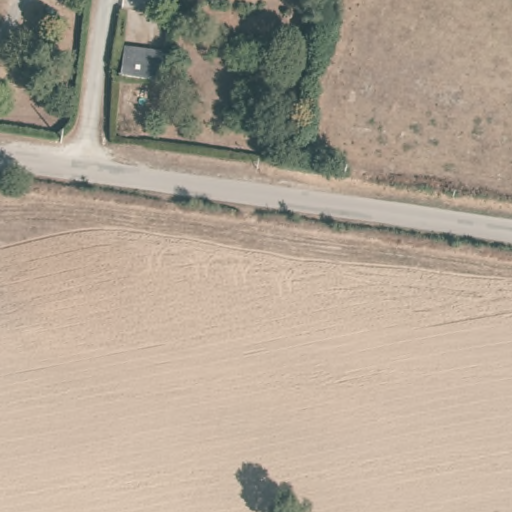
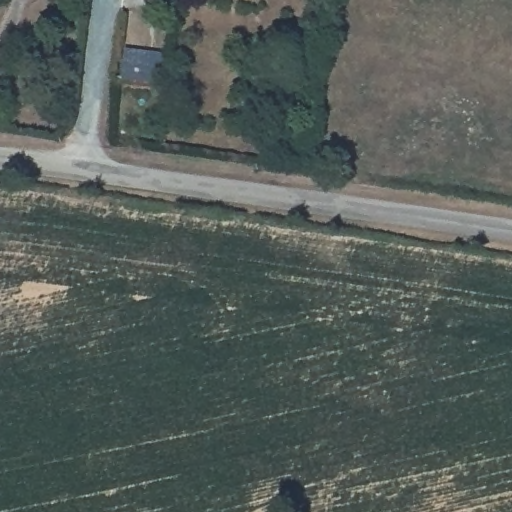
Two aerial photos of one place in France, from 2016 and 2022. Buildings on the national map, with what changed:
unchanged [(166,93),(116,89),(120,53),(171,59),(166,93)]

